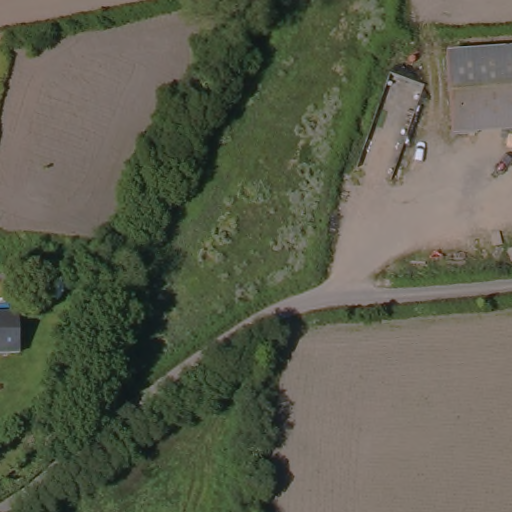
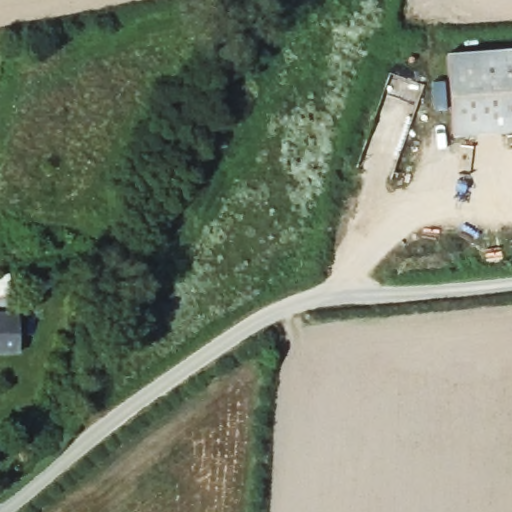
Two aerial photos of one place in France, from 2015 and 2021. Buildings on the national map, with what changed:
unchanged [(512,132),(453,137),(444,57),(512,51),(512,132)]
unchanged [(0,297),(0,279),(14,277),(14,297),(0,297)]
unchanged [(18,317),(16,358),(0,357),(0,316),(18,317)]

